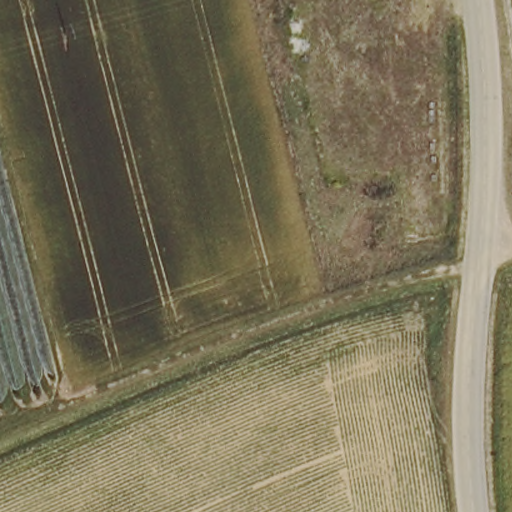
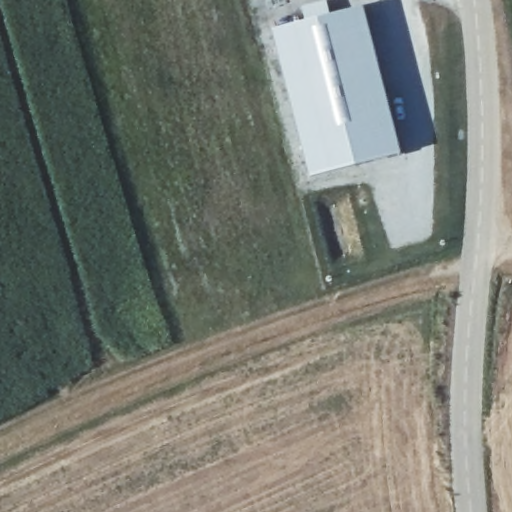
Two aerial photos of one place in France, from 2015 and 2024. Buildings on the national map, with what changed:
new [(364,8),(401,156),(310,178),(272,31),(364,8)]

